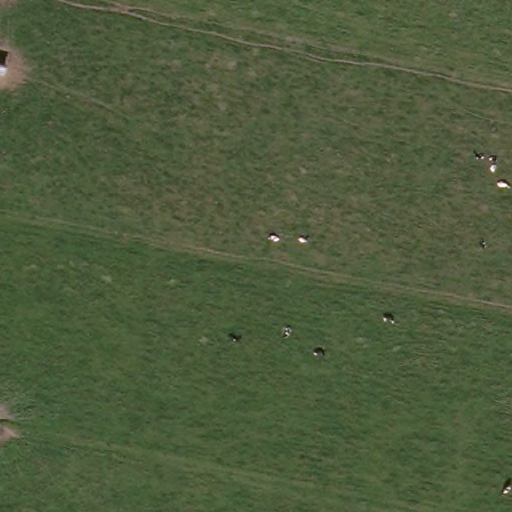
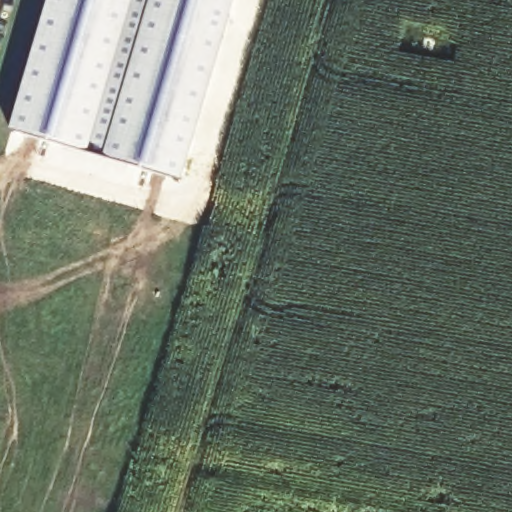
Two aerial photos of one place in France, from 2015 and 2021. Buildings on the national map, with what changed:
new [(10,130),(48,0),(235,0),(181,182),(10,130)]

